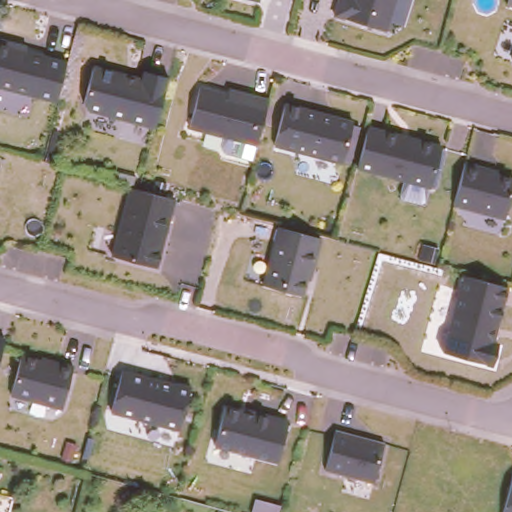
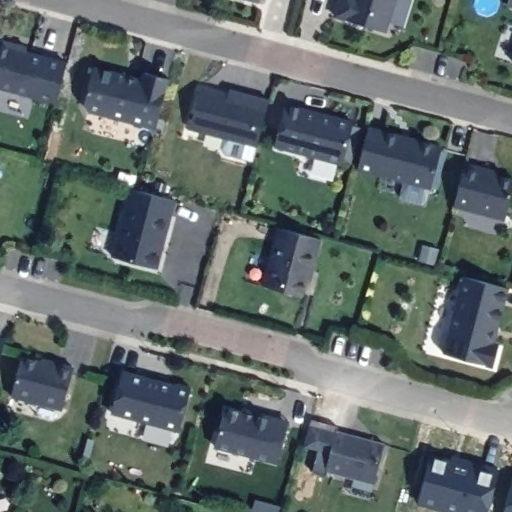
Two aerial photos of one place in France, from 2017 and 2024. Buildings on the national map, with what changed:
unchanged [(250,0),(260,0),(259,2),(250,0)]
unchanged [(333,17),(339,0),(398,0),(388,34),(333,17)]
unchanged [(57,105),(0,90),(0,41),(5,40),(30,45),(29,51),(68,61),(57,105)]
unchanged [(155,130),(87,115),(84,105),(95,65),(142,77),(144,70),(170,77),(155,130)]
unchanged [(231,95),(233,90),(270,100),(258,148),(190,130),(201,87),(231,95)]
unchanged [(355,121),(354,125),(362,127),(352,167),(275,149),(287,104),(355,121)]
unchanged [(447,145),(435,192),(357,170),(369,126),(447,145)]
unchanged [(512,198),(506,223),(452,208),(465,162),(512,174),(512,198)]
unchanged [(177,201),(158,270),(111,256),(130,189),(177,201)]
unchanged [(312,280),(308,280),(303,297),(262,286),(277,227),(323,239),(312,280)]
unchanged [(510,286),(495,344),(500,345),(495,368),(442,352),(438,343),(440,335),(448,332),(462,275),(510,286)]
unchanged [(6,338),(0,362),(0,337),(6,338)]
unchanged [(74,367),(63,412),(10,398),(23,354),(74,367)]
unchanged [(191,387),(180,432),(110,415),(123,370),(191,387)]
unchanged [(278,464),(213,448),(225,404),(290,420),(278,464)]
unchanged [(386,445),(375,485),(324,472),(335,431),(386,445)]
new [(498,469),(487,512),(442,512),(418,506),(432,455),(451,461),(452,455),(498,469)]
unchanged [(512,484),(512,512),(504,512),(512,484)]

